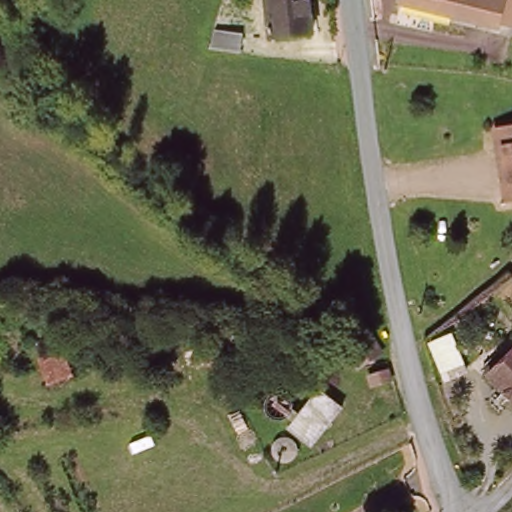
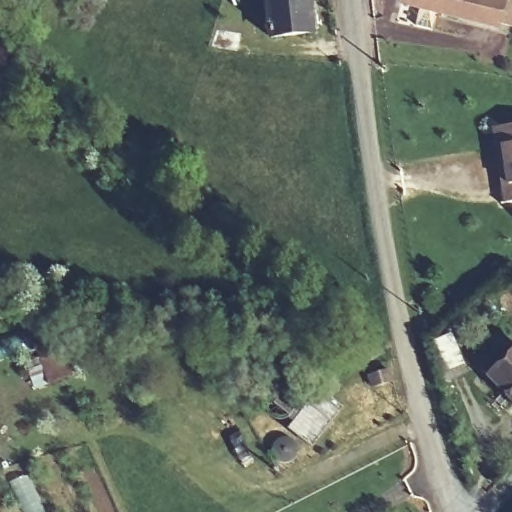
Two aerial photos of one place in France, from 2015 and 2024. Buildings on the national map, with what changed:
unchanged [(275,35),(272,0),(311,0),(314,30),(275,35)]
unchanged [(491,21),(488,28),(398,5),(399,0),(512,0),(512,8),(507,26),(491,21)]
unchanged [(222,33),(244,38),(239,57),(216,53),(222,33)]
unchanged [(500,159),(496,129),(512,126),(512,170),(506,171),(505,158),(500,159)]
unchanged [(512,201),(510,202),(506,171),(512,170),(512,201)]
unchanged [(373,347),(383,363),(366,372),(357,357),(373,347)]
unchanged [(512,363),(512,401),(492,383),(512,363)]
unchanged [(316,446),(290,427),(300,415),(298,410),(298,412),(296,414),(295,415),(291,417),(288,417),(286,416),(285,415),(283,414),(282,412),(281,410),(281,407),(282,404),(284,401),(286,400),(289,399),(292,399),(295,401),(296,402),(297,404),(298,406),(307,392),(317,400),(325,390),(332,395),(348,407),(316,446)]
unchanged [(290,437),(294,436),(297,437),(300,439),(302,441),(304,443),(305,446),(305,449),(305,451),(305,453),(303,455),(301,458),(299,459),(297,460),(294,461),(291,461),(288,460),(286,459),(285,457),(282,455),(281,452),(281,450),(281,448),(281,445),(282,442),(284,440),(286,439),(287,438),(290,437)]

